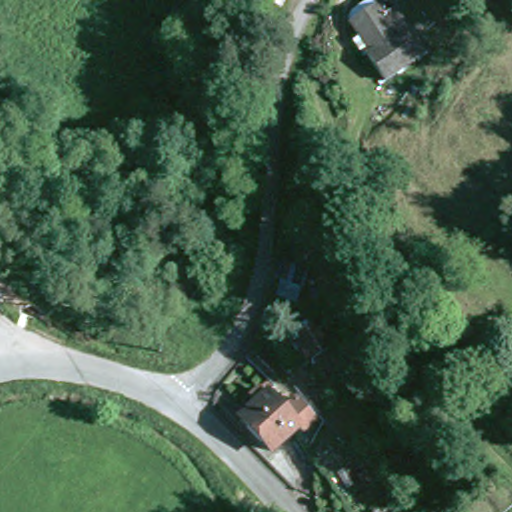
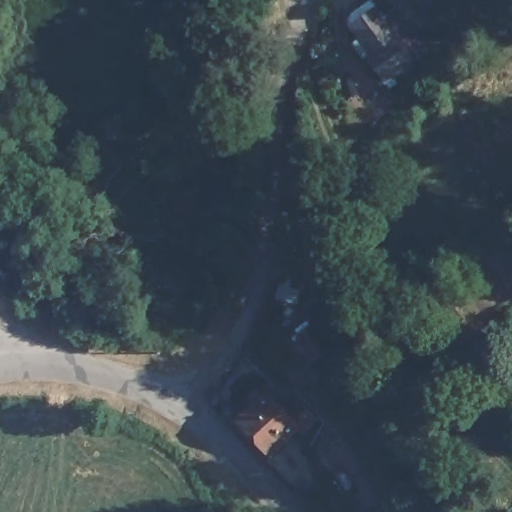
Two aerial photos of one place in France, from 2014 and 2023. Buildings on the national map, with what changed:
unchanged [(404,51),(377,65),(360,29),(386,15),(404,51)]
unchanged [(295,303),(271,297),(280,266),(303,272),(295,303)]
unchanged [(465,316),(451,328),(439,313),(453,301),(465,316)]
unchanged [(325,347),(311,356),(298,337),(312,328),(325,347)]
unchanged [(281,410),(292,398),(315,420),(302,432),(299,430),(272,456),(241,425),(257,409),(250,402),(258,393),(266,401),(269,398),(281,410)]

